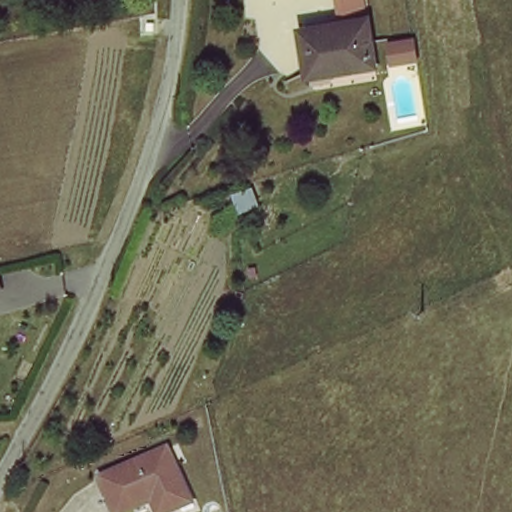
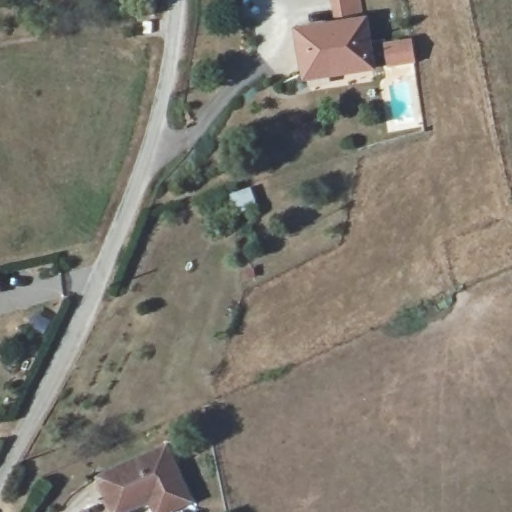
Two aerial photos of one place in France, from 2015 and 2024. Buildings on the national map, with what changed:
unchanged [(366,19),(376,68),(331,77),(330,69),(305,74),(297,32),(366,19)]
unchanged [(404,31),(407,51),(383,55),(379,36),(404,31)]
unchanged [(4,287),(0,288),(0,273),(4,287)]
unchanged [(177,506),(161,512),(159,512),(152,497),(117,512),(101,473),(162,447),(169,445),(175,460),(188,490),(192,499),(177,506)]

